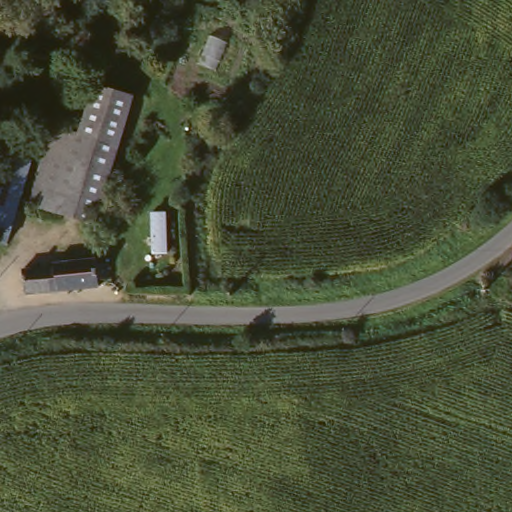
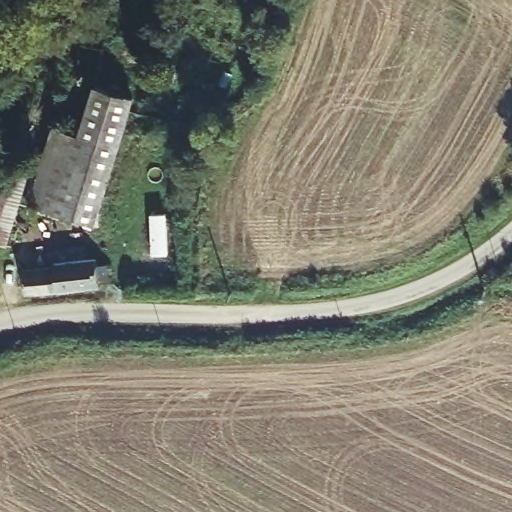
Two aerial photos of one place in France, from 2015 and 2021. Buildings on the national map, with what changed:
unchanged [(79,142),(95,95),(133,109),(89,225),(28,202),(53,132),(79,142)]
unchanged [(7,231),(5,236),(0,234),(0,146),(34,157),(7,231)]
unchanged [(91,257),(93,263),(99,263),(101,262),(104,277),(97,277),(96,282),(68,292),(25,296),(23,269),(57,267),(57,263),(91,257)]

